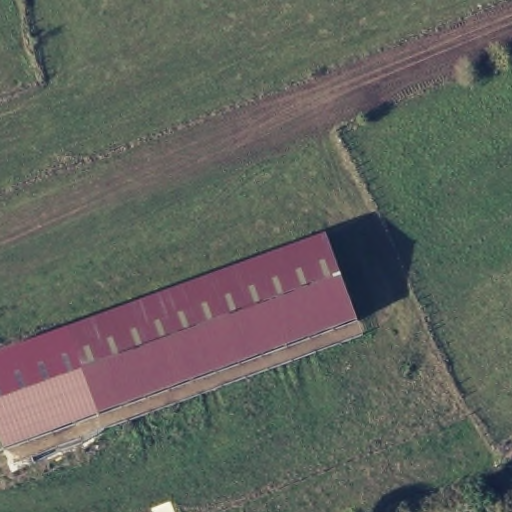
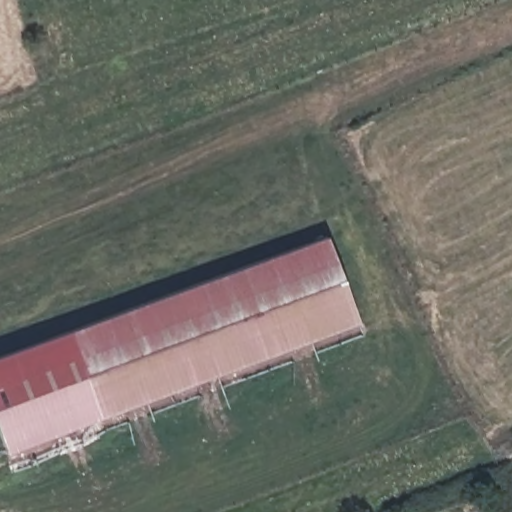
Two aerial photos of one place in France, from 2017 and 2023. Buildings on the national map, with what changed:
unchanged [(358,320),(3,441),(0,431),(0,352),(327,238),(358,320)]

